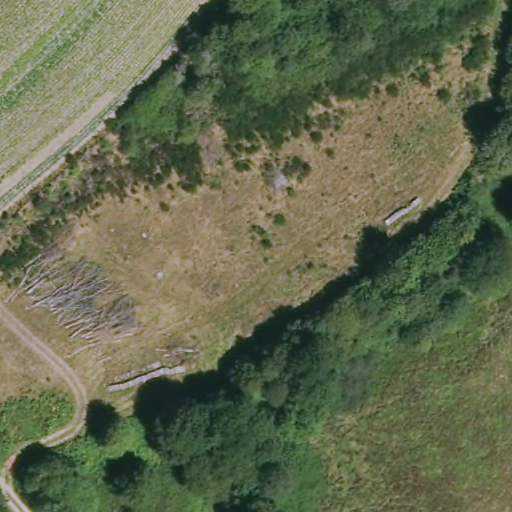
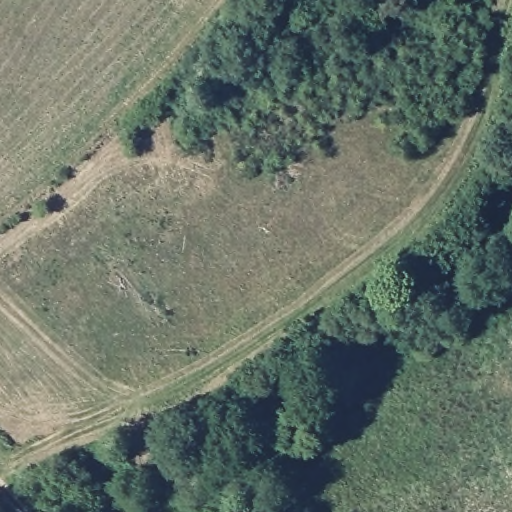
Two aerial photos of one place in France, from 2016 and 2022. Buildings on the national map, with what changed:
[]

